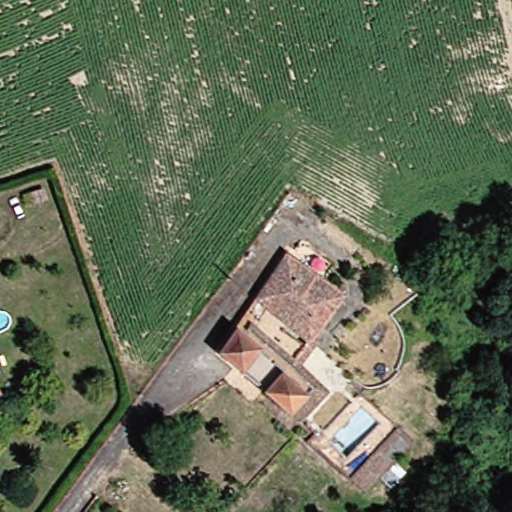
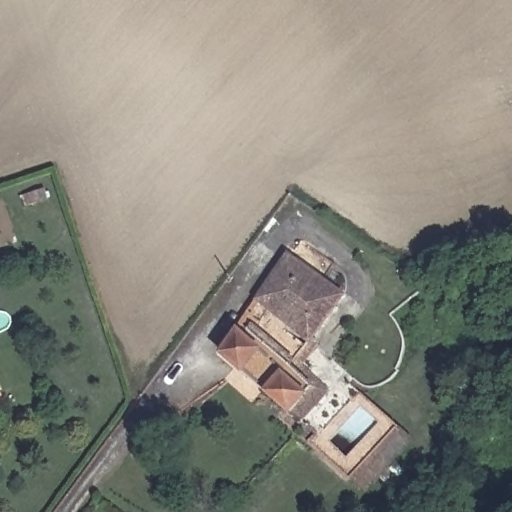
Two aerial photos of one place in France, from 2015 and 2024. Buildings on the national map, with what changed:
unchanged [(292,357),(309,336),(265,296),(302,250),(351,289),(312,334),(319,340),(298,363),(292,357)]
unchanged [(238,325),(290,373),(315,394),(319,398),(327,405),(323,410),(309,426),(295,413),(270,393),(247,375),(217,350),(237,326),(238,325)]
unchanged [(8,390),(10,399),(0,403),(0,367),(8,390)]
unchanged [(395,423),(410,435),(392,455),(406,466),(389,490),(372,477),(364,489),(350,478),(395,423)]

